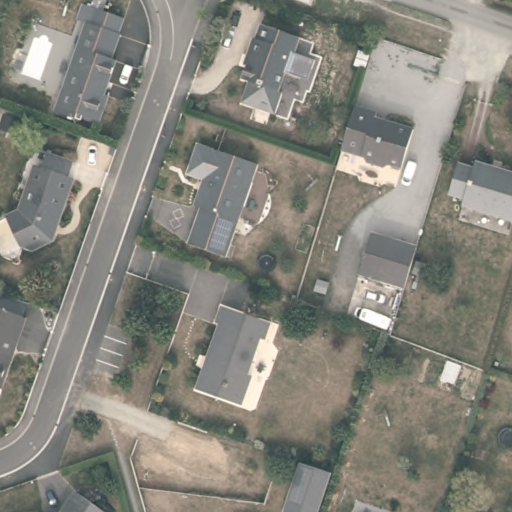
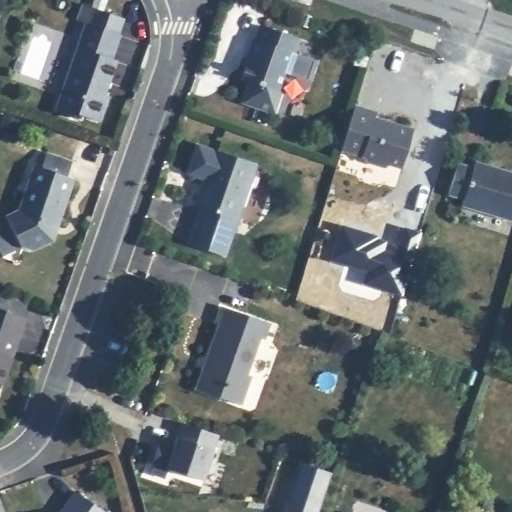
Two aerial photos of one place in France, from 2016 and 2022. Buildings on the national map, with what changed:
unchanged [(123,31),(114,57),(119,58),(107,90),(113,92),(104,118),(83,111),(82,116),(58,107),(89,19),(123,31)]
unchanged [(295,35),(290,50),(288,49),(274,89),(276,89),(268,111),(235,99),(243,77),(236,76),(244,52),(240,51),(246,32),(250,34),(255,21),(295,35)]
unchanged [(377,116),(375,122),(413,135),(402,171),(390,167),(384,172),(366,166),(363,160),(341,152),(353,109),(377,116)]
unchanged [(227,256),(188,242),(200,205),(193,203),(202,177),(186,172),(197,142),(258,162),(227,256)]
unchanged [(55,241),(31,251),(22,248),(9,220),(18,216),(34,170),(40,172),(44,157),(76,168),(72,182),(76,184),(55,241)]
unchanged [(458,211),(460,207),(445,201),(455,168),(471,172),(473,167),(512,180),(512,224),(511,227),(458,211)]
unchanged [(359,278),(372,239),(417,252),(405,292),(359,278)]
unchanged [(266,341),(262,340),(250,374),(254,376),(244,405),(197,388),(219,325),(215,323),(221,306),(272,324),(266,341)]
unchanged [(26,317),(17,342),(12,341),(9,350),(12,357),(2,386),(0,385),(0,308),(26,317)]
new [(159,444),(173,448),(182,423),(218,436),(203,481),(152,463),(159,444)]
unchanged [(284,512),(300,463),(330,473),(318,512),(284,512)]
unchanged [(77,488),(110,511),(110,512),(60,512),(64,511),(77,488)]

